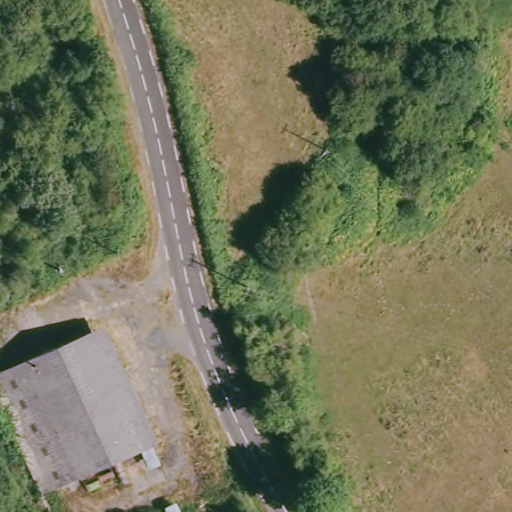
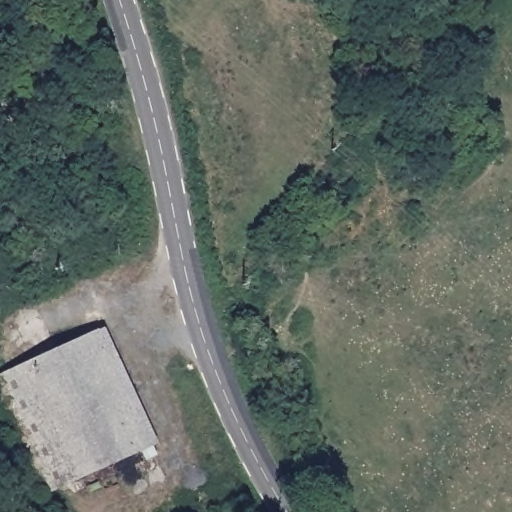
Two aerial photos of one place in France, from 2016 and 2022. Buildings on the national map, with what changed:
unchanged [(88,334),(142,449),(76,480),(22,364),(88,334)]
unchanged [(76,480),(49,492),(0,389),(0,373),(22,364),(76,480)]

